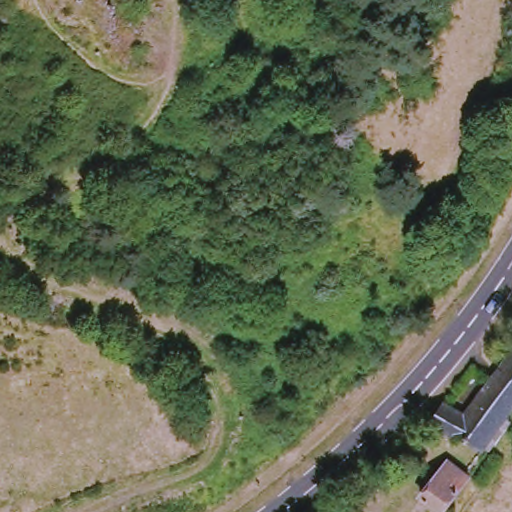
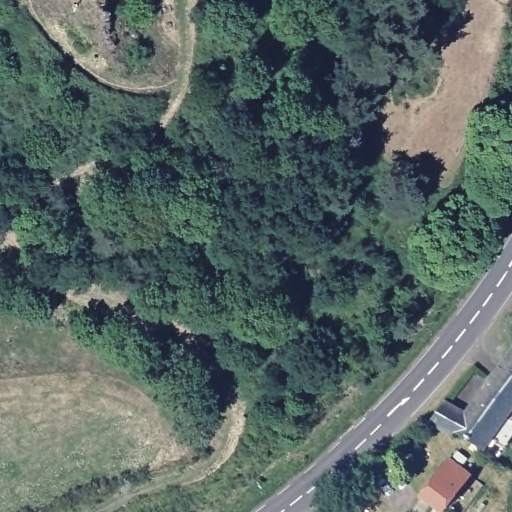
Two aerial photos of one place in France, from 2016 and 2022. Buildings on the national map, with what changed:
unchanged [(466,416),(512,356),(512,414),(511,416),(512,418),(512,428),(498,449),(491,445),(486,452),(458,433),(454,438),(432,424),(446,402),(466,416)]
unchanged [(449,512),(437,512),(424,501),(453,466),(473,481),(449,512)]

